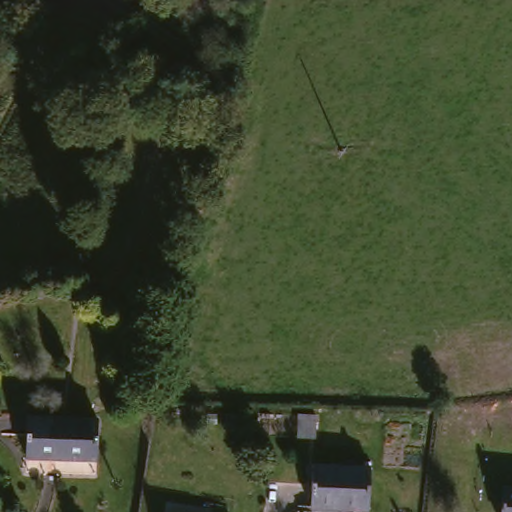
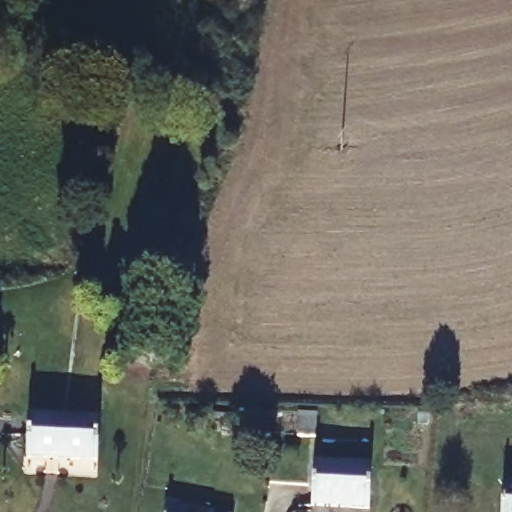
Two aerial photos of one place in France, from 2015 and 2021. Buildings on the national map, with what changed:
unchanged [(20,463),(25,415),(97,418),(93,467),(20,463)]
unchanged [(316,440),(296,440),(297,416),(318,416),(316,440)]
unchanged [(312,462),(373,466),(368,511),(310,508),(312,462)]
unchanged [(499,512),(501,488),(512,489),(512,512),(499,512)]

